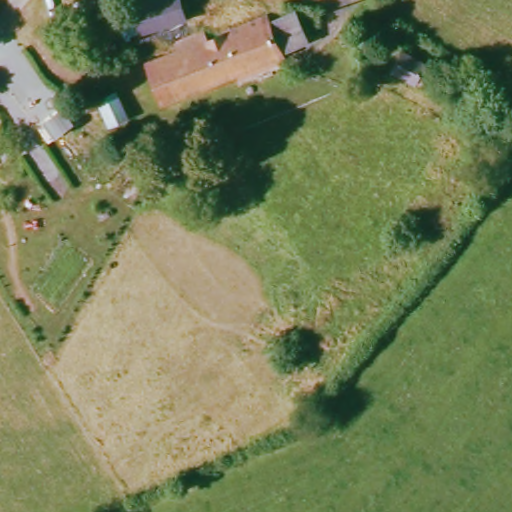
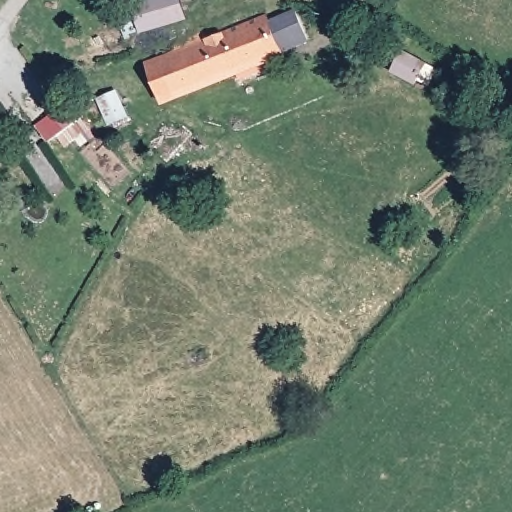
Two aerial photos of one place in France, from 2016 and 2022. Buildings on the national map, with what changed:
unchanged [(187,20),(143,33),(131,3),(142,0),(183,0),(187,20)]
unchanged [(296,51),(282,57),(284,65),(168,112),(148,71),(180,58),(177,48),(206,37),(211,46),(264,23),(267,28),(284,21),(296,51)]
unchanged [(423,84),(413,78),(400,93),(381,80),(401,49),(433,73),(423,84)]
unchanged [(127,120),(113,126),(102,97),(114,93),(127,120)]

